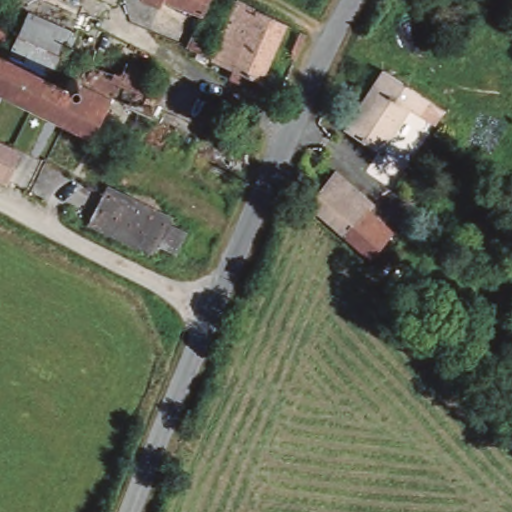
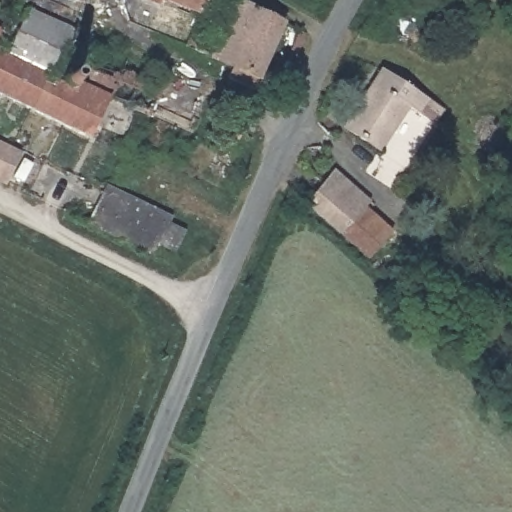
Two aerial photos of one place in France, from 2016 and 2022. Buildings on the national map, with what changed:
unchanged [(64,84),(74,56),(89,62),(92,53),(143,74),(138,85),(159,94),(149,117),(128,107),(104,99),(90,136),(89,138),(0,95),(0,32),(13,38),(20,22),(12,19),(15,11),(9,9),(13,0),(84,0),(49,78),(64,84)]
unchanged [(143,0),(160,0),(157,6),(143,0)]
unchanged [(227,79),(232,67),(185,46),(199,14),(165,0),(236,0),(283,23),(254,90),(227,79)]
unchanged [(297,54),(290,50),(299,30),(305,34),(297,54)]
unchanged [(380,151),(344,127),(381,69),(428,100),(418,114),(408,108),(380,151)]
unchanged [(240,139),(228,134),(235,120),(246,125),(240,139)]
unchanged [(6,183),(0,180),(0,141),(21,151),(6,183)]
unchanged [(365,207),(392,231),(368,258),(307,205),(335,170),(370,201),(365,207)]
unchanged [(186,232),(175,253),(159,245),(154,255),(87,222),(102,191),(170,224),(186,232)]

